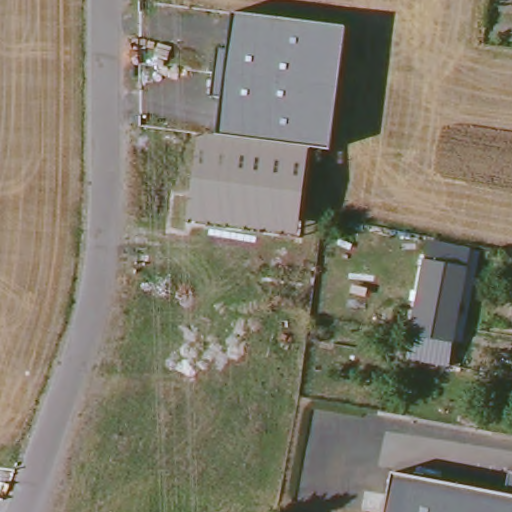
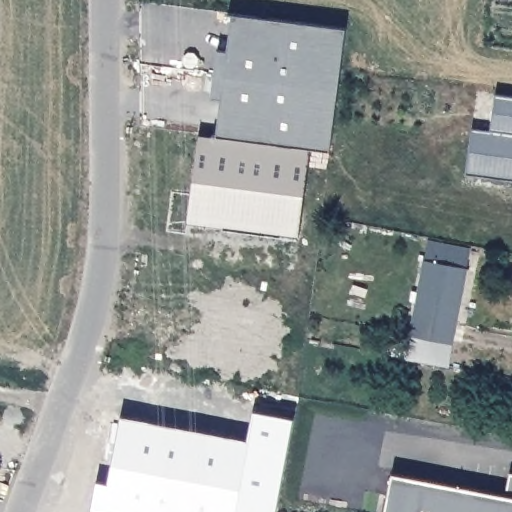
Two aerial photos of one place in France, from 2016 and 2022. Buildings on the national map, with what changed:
unchanged [(188,222),(198,138),(205,135),(220,135),(222,99),(213,97),(220,48),(230,49),(234,14),(346,27),(330,149),(310,146),(299,235),(188,222)]
new [(512,181),(465,175),(472,130),(490,130),(495,94),(512,97),(512,181)]
unchanged [(407,357),(428,244),(467,251),(448,365),(407,357)]
new [(283,468),(274,512),(90,512),(87,511),(93,480),(105,483),(117,420),(245,442),(252,413),(293,422),(283,468)]
unchanged [(512,512),(384,512),(390,485),(392,473),(505,495),(510,471),(512,472),(512,512)]

